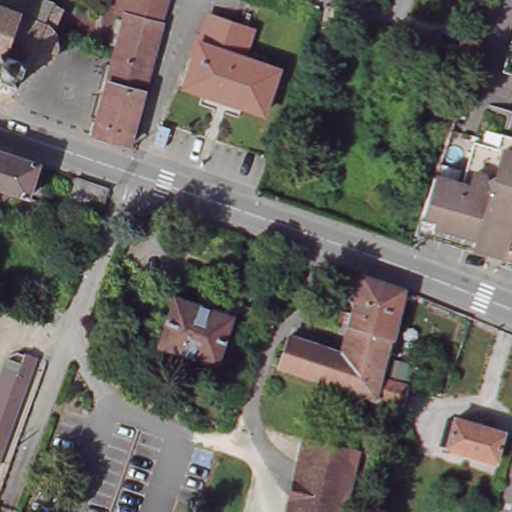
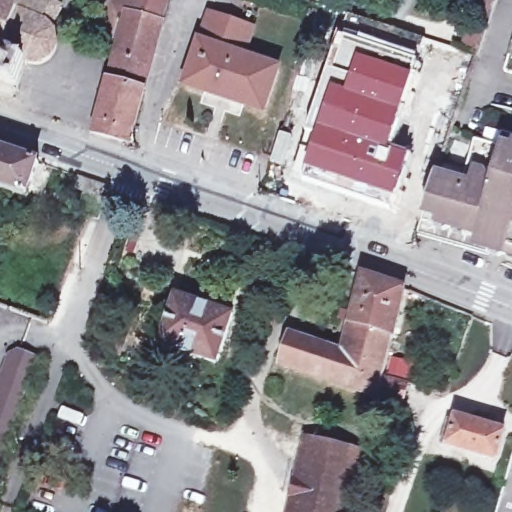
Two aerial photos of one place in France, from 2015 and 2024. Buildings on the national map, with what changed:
unchanged [(56,8),(47,29),(50,34),(51,42),(50,48),(45,55),(42,59),(37,61),(31,63),(26,65),(22,64),(13,88),(0,82),(0,0),(42,0),(41,0),(56,8)]
unchanged [(129,148),(101,139),(93,136),(128,10),(118,6),(119,1),(116,0),(170,0),(161,33),(133,136),(129,148)]
unchanged [(265,113),(189,86),(213,15),(255,29),(246,57),(280,69),(265,113)]
new [(302,180),(305,170),(316,138),(306,134),(341,30),(419,59),(391,148),(412,155),(395,204),(369,195),(369,201),(302,180)]
unchanged [(509,71),(512,59),(512,73),(509,71)]
unchanged [(506,254),(508,248),(481,240),(481,238),(424,220),(439,175),(464,183),(478,140),(504,148),(508,134),(512,135),(512,133),(512,183),(508,197),(512,197),(512,256),(506,254)]
unchanged [(15,191),(0,186),(0,149),(41,164),(28,196),(15,191)]
unchanged [(98,220),(67,209),(79,177),(110,187),(98,220)]
unchanged [(407,289),(396,339),(353,324),(365,274),(407,289)]
unchanged [(218,364),(161,344),(178,295),(200,303),(203,293),(218,298),(214,308),(234,315),(218,364)]
unchanged [(382,399),(381,399),(284,368),(293,334),(346,353),(353,324),(396,339),(387,378),(406,383),(400,403),(382,399)]
unchanged [(26,351),(41,356),(0,469),(0,468),(0,376),(6,357),(21,363),(26,351)]
unchanged [(499,460),(449,447),(458,417),(507,431),(499,460)]
unchanged [(349,512),(296,512),(311,442),(363,453),(349,512)]

